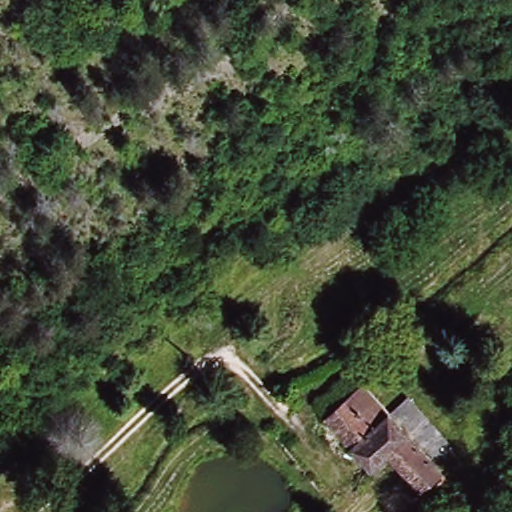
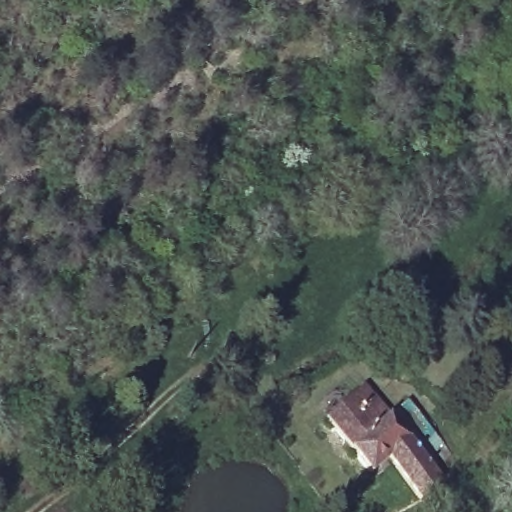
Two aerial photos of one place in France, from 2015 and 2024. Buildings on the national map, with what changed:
unchanged [(390,460),(377,475),(325,425),(360,388),(447,472),(426,495),(390,460)]

